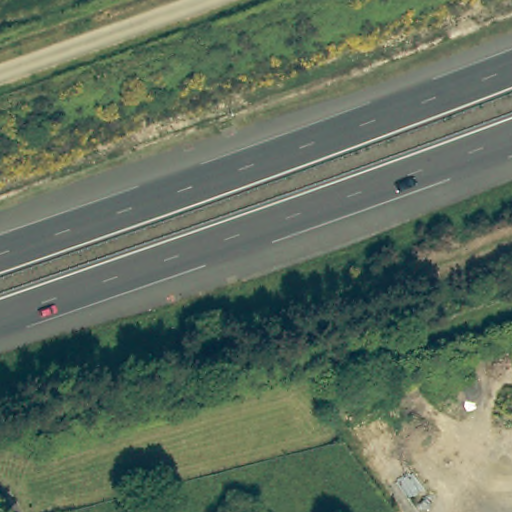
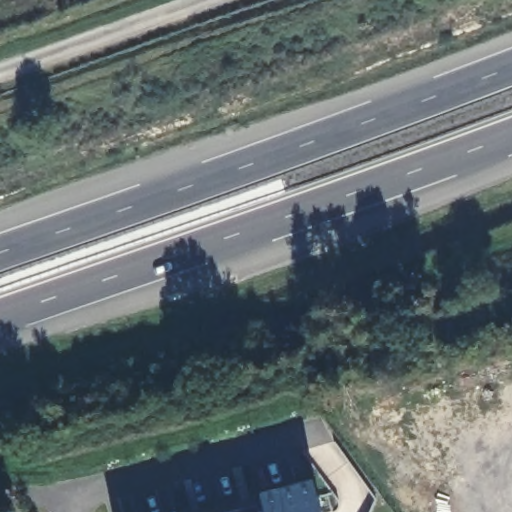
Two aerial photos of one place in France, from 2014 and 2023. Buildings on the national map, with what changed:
new [(314,477),(323,512),(265,512),(260,492),(314,477)]

